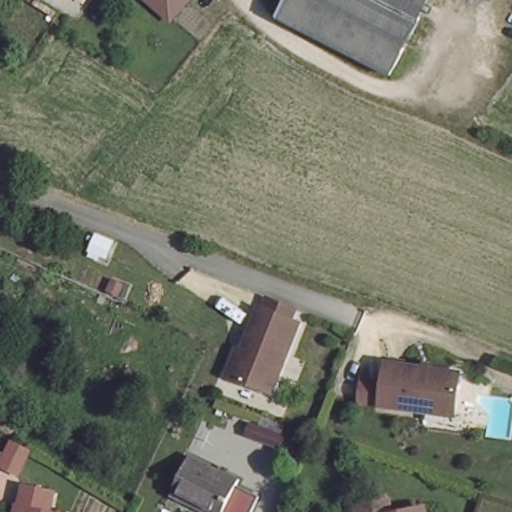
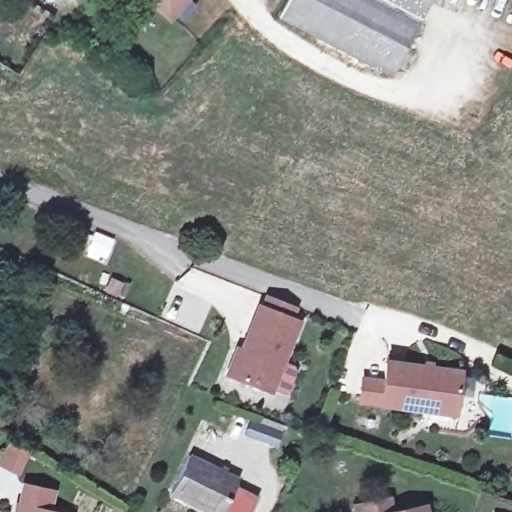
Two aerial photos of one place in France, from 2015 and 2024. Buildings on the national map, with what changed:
unchanged [(145,0),(190,0),(171,22),(145,0)]
unchanged [(281,10),(286,0),(430,0),(395,68),(281,10)]
unchanged [(264,387),(217,368),(226,346),(233,348),(254,298),(261,301),(266,287),(294,297),(288,311),(295,314),(264,387)]
unchanged [(426,407),(381,401),(361,398),(363,377),(383,380),(387,354),(460,362),(455,397),(453,410),(426,407)]
unchanged [(278,440),(244,433),(247,413),(281,420),(278,440)]
unchanged [(36,450),(22,477),(0,467),(0,466),(16,438),(36,450)]
unchanged [(234,479),(230,487),(252,497),(245,512),(213,512),(167,491),(184,456),(234,479)]
unchanged [(56,488),(50,511),(54,512),(14,512),(16,501),(22,502),(28,481),(56,488)]
unchanged [(386,512),(353,512),(351,502),(382,495),(386,512)]
unchanged [(417,505),(418,512),(386,512),(417,505)]

